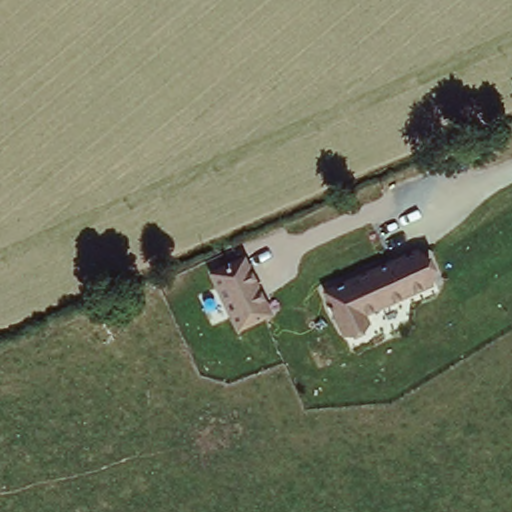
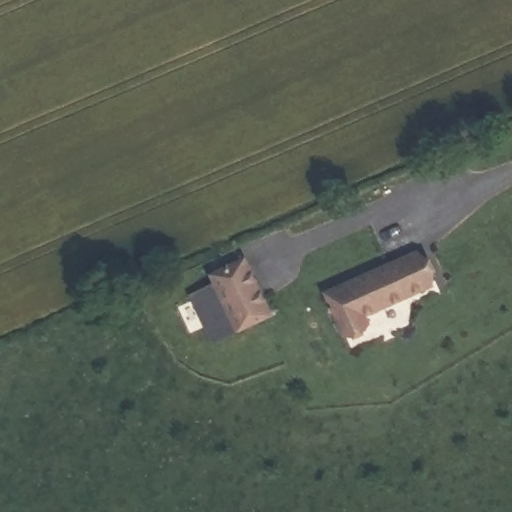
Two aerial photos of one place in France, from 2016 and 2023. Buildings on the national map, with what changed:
unchanged [(440,285),(370,316),(375,325),(346,337),(321,290),(422,244),(440,285)]
unchanged [(238,333),(209,270),(251,250),(280,313),(238,333)]

